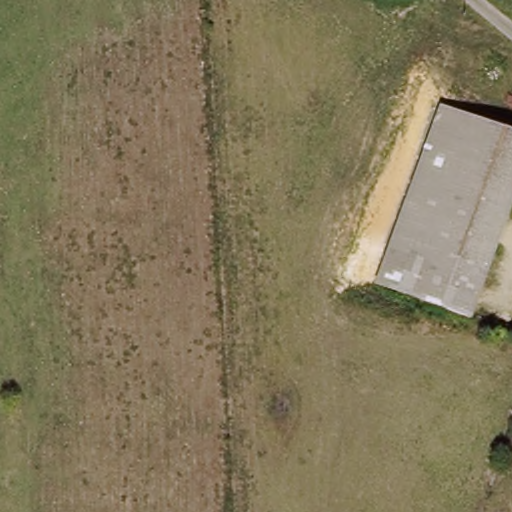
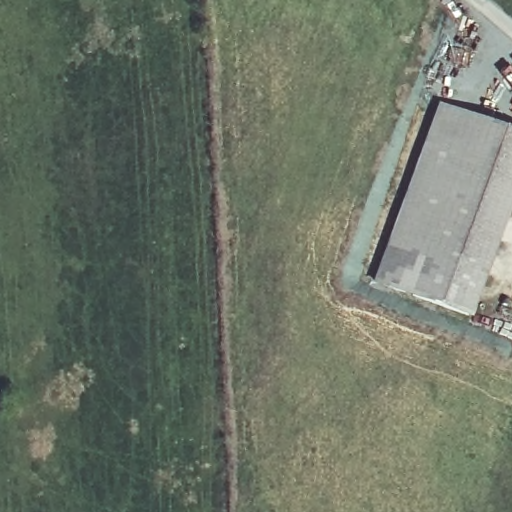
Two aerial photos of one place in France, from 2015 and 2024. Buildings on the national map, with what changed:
unchanged [(512,245),(483,312),(387,272),(462,102),(512,123),(512,245)]

